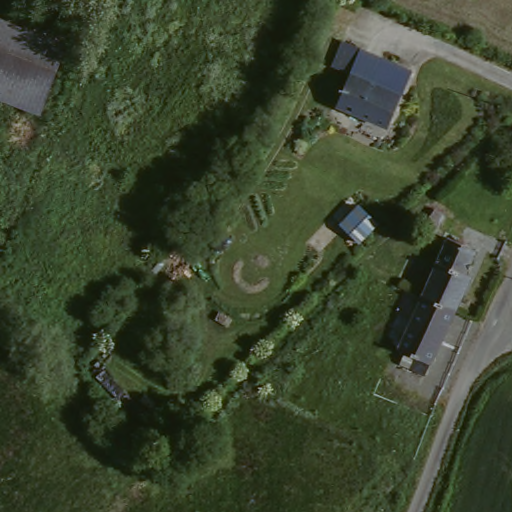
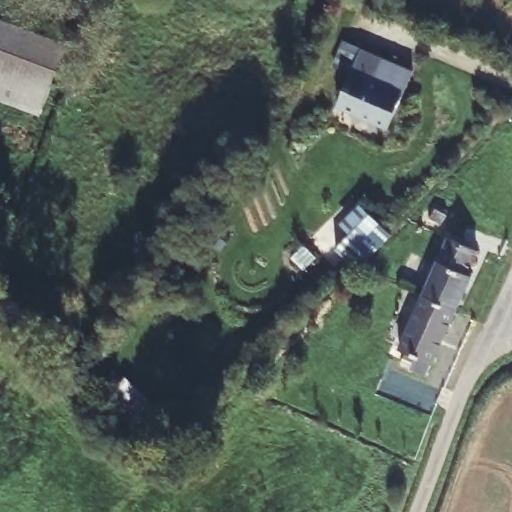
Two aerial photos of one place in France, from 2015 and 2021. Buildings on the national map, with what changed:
unchanged [(0,18),(65,43),(49,85),(0,67),(0,18)]
unchanged [(409,76),(386,135),(332,114),(356,53),(409,76)]
unchanged [(0,99),(0,67),(49,85),(39,113),(0,99)]
unchanged [(452,238),(480,252),(468,274),(475,277),(460,309),(426,294),(452,238)]
unchanged [(460,309),(434,362),(402,346),(426,294),(460,309)]

